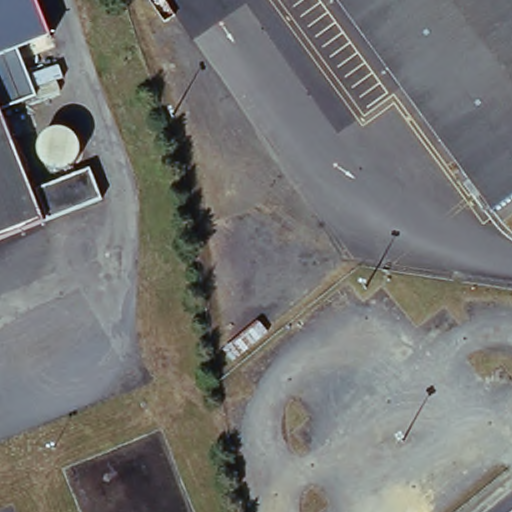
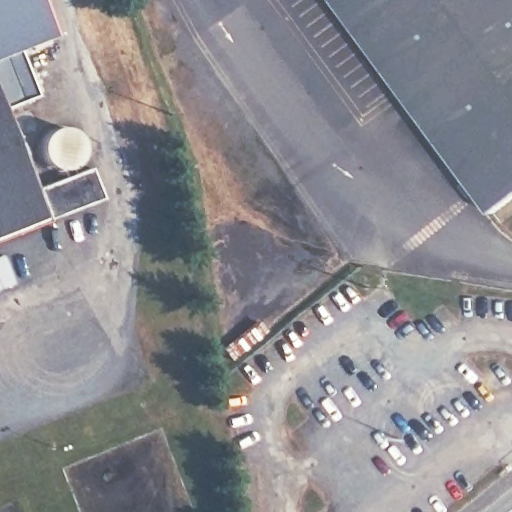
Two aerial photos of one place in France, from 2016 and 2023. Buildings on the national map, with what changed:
unchanged [(51,35),(19,48),(37,96),(1,109),(44,222),(0,239),(0,0),(37,0),(51,35)]
unchanged [(497,217),(337,0),(512,0),(512,206),(497,217)]
unchanged [(101,200),(47,220),(35,190),(90,169),(101,200)]

